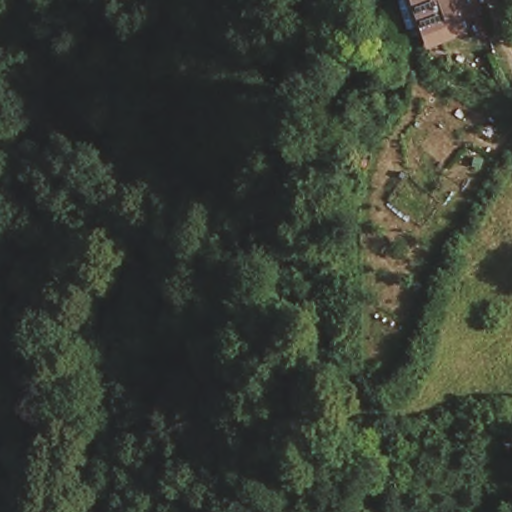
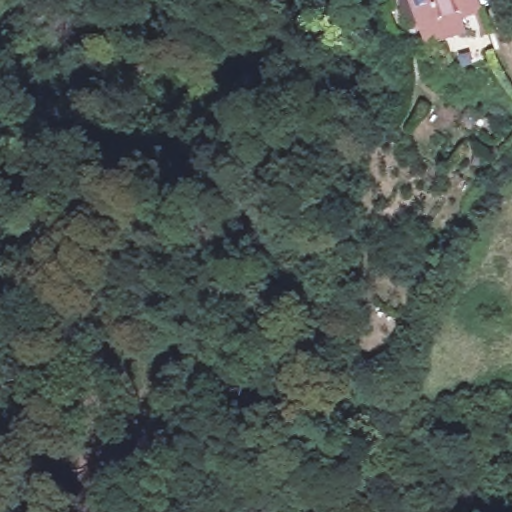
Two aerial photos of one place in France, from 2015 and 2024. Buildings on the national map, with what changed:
unchanged [(474,0),(478,12),(425,38),(410,6),(411,4),(414,2),(413,0),(474,0)]

